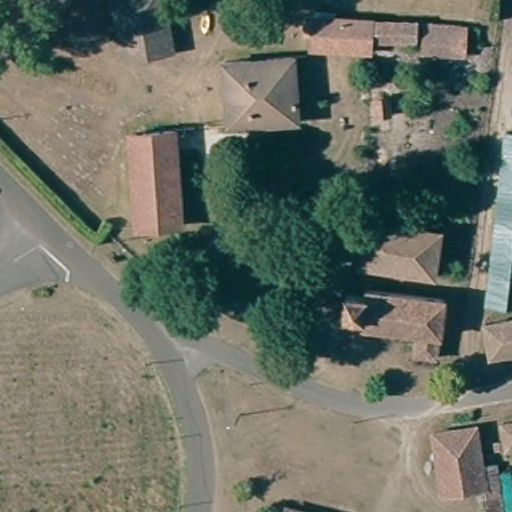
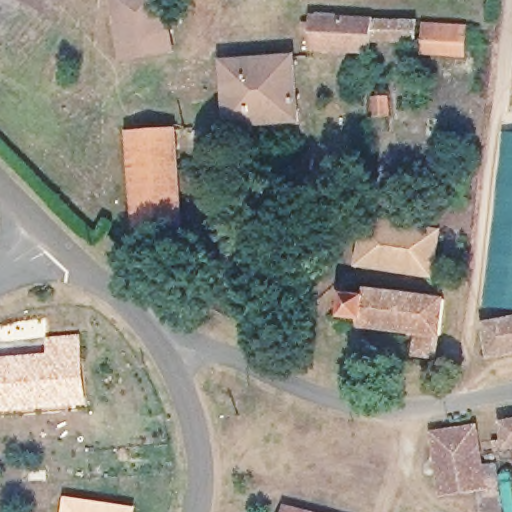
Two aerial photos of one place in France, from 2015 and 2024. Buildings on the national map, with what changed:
unchanged [(121,63),(119,44),(114,0),(162,0),(165,40),(167,57),(121,63)]
unchanged [(367,44),(367,53),(313,50),(315,20),(368,23),(367,44)]
unchanged [(428,40),(424,40),(417,39),(413,49),(367,44),(368,23),(428,26),(428,40)]
unchanged [(424,60),(424,47),(424,40),(428,40),(428,26),(491,30),(490,52),(467,51),(466,63),(424,60)]
unchanged [(223,60),(298,58),(303,124),(228,129),(223,60)]
unchanged [(142,235),(135,135),(176,132),(185,230),(180,234),(142,235)]
unchanged [(506,135),(512,135),(512,310),(490,308),(506,135)]
unchanged [(364,249),(366,229),(439,235),(437,254),(364,249)]
unchanged [(435,275),(364,269),(363,261),(364,249),(437,254),(435,275)]
unchanged [(351,299),(371,301),(371,295),(450,305),(446,341),(444,341),(442,363),(421,360),(424,338),(367,331),(368,324),(349,321),(351,299)]
unchanged [(512,322),(512,355),(489,359),(484,327),(512,322)]
new [(0,413),(0,359),(48,355),(47,339),(81,336),(88,406),(0,413)]
unchanged [(487,492),(438,494),(432,473),(428,436),(476,429),(484,477),(499,478),(502,491),(487,492)]
unchanged [(512,429),(512,437),(510,429),(512,429)]
new [(136,506),(136,512),(62,512),(64,496),(136,506)]
unchanged [(295,512),(289,512),(289,511),(295,512)]

